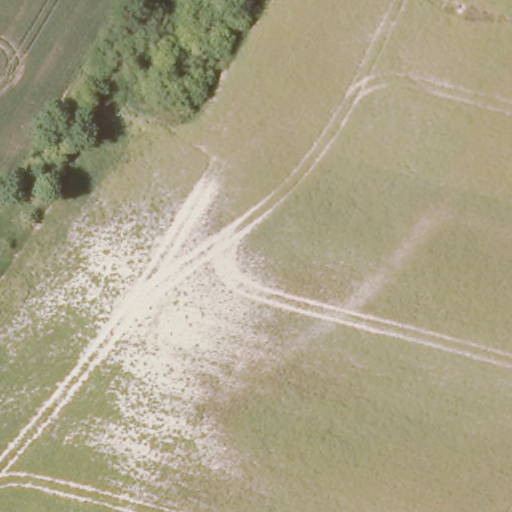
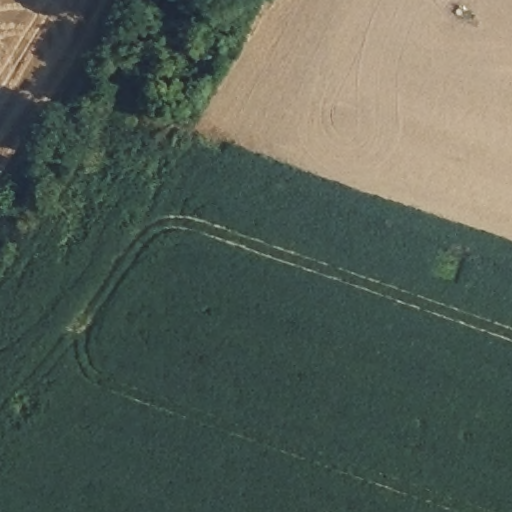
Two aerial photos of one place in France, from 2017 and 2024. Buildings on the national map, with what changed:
unchanged [(472,9),(470,24),(445,16),(452,0),(453,0),(472,9)]

